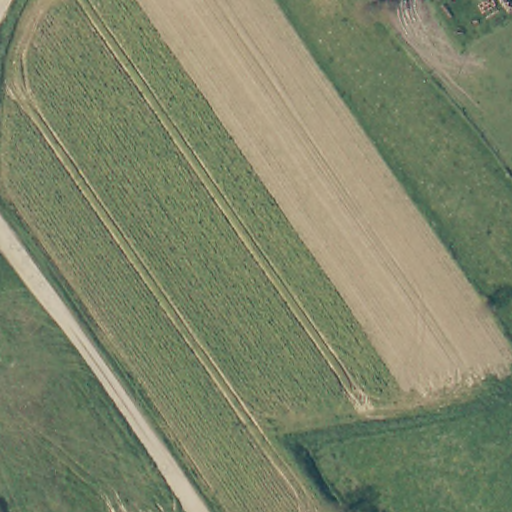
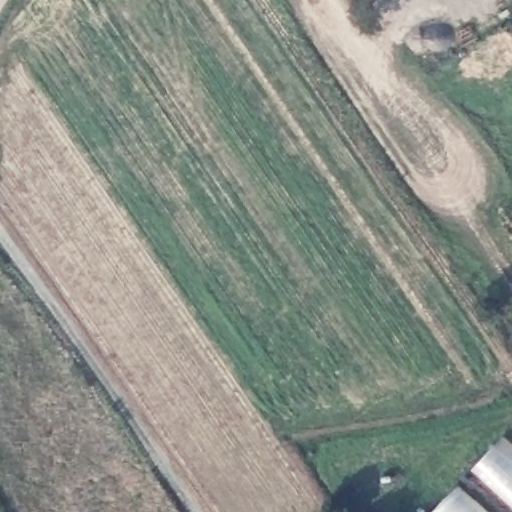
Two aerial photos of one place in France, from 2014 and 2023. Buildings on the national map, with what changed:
new [(472,470),(501,438),(512,448),(512,506),(472,470)]
new [(457,488),(483,512),(436,512),(457,488)]

